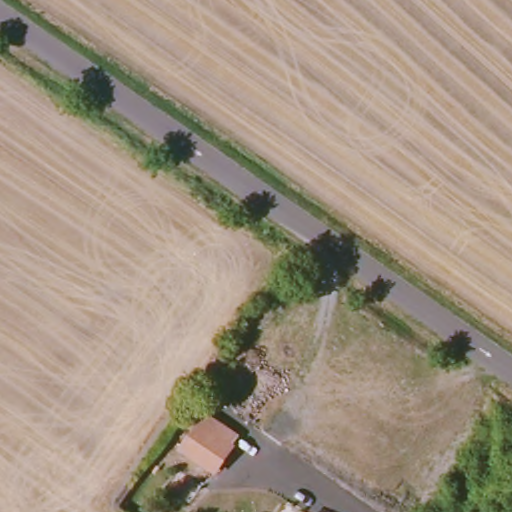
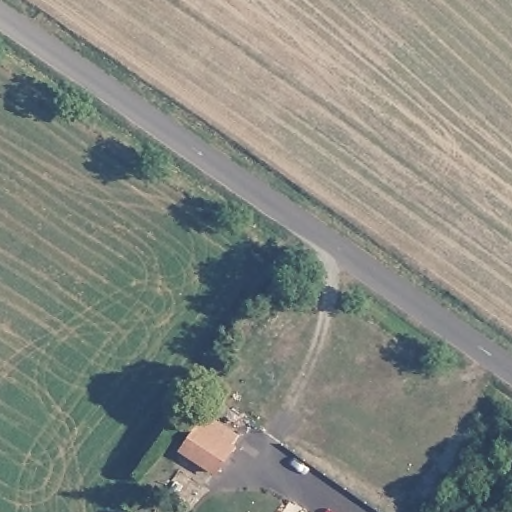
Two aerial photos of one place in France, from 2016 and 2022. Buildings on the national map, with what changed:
unchanged [(237,441),(218,467),(184,444),(202,418),(237,441)]

